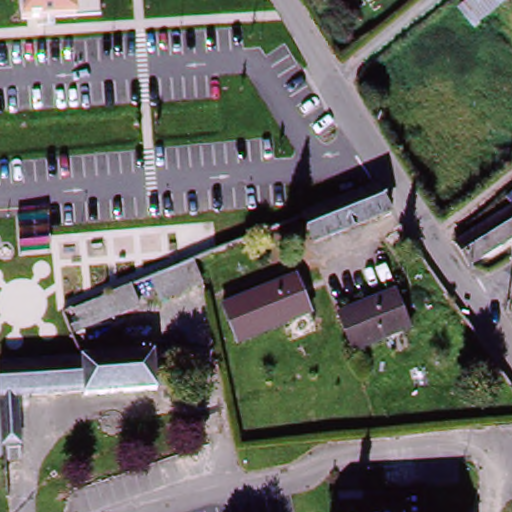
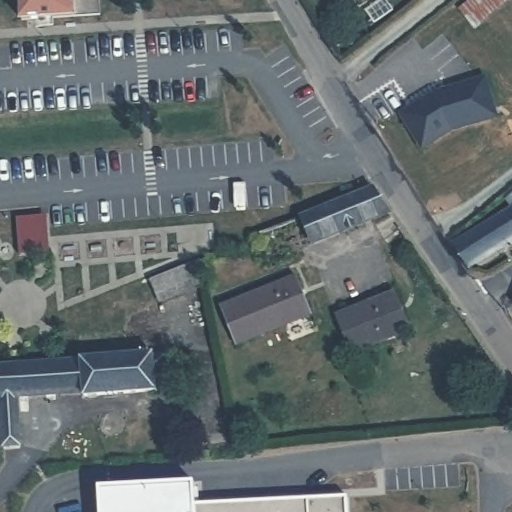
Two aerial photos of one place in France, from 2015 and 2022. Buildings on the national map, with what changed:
unchanged [(99,16),(77,17),(22,22),(21,0),(97,0),(99,16)]
new [(420,149),(399,115),(432,94),(445,89),(455,86),(482,78),(494,116),(460,126),(450,130),(420,149)]
unchanged [(390,213),(356,227),(314,245),(305,222),(306,222),(334,211),(377,194),(390,213)]
unchanged [(512,242),(496,220),(512,210),(512,242)]
unchanged [(496,220),(512,242),(471,268),(457,244),(496,220)]
unchanged [(202,286),(162,301),(153,278),(192,262),(202,286)]
unchanged [(310,314),(236,343),(222,310),(295,280),(310,314)]
demolished [(74,335),(65,313),(132,287),(140,307),(75,335),(74,335)]
unchanged [(412,323),(356,347),(342,312),(397,290),(412,323)]
unchanged [(5,462),(0,367),(80,360),(153,354),(154,357),(166,357),(168,388),(155,390),(156,393),(83,397),(82,393),(15,399),(19,462),(5,462)]
demolished [(320,386),(334,386),(334,397),(320,397),(320,386)]
new [(196,482),(197,502),(350,496),(351,512),(101,512),(100,487),(196,482)]
demolished [(359,509),(359,508),(359,506),(422,502),(422,507),(422,512),(334,512),(334,511),(359,509)]

